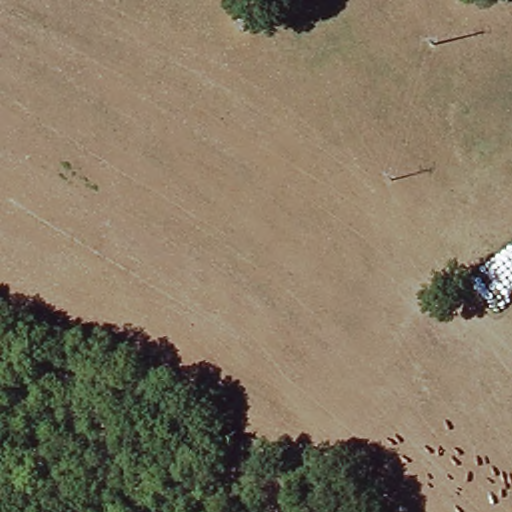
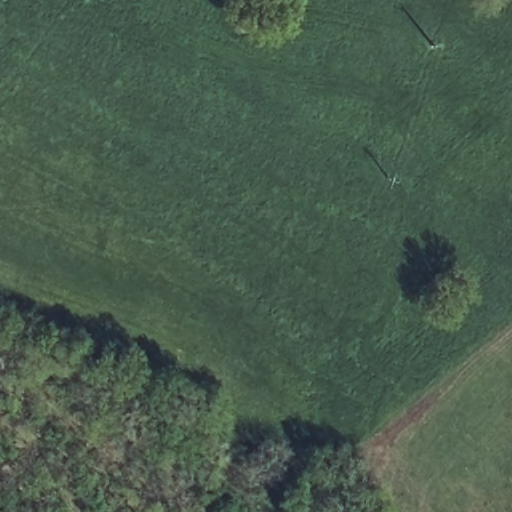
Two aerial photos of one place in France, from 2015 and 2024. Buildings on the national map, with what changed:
unchanged [(251,21),(242,31),(235,24),(243,14),(251,21)]

